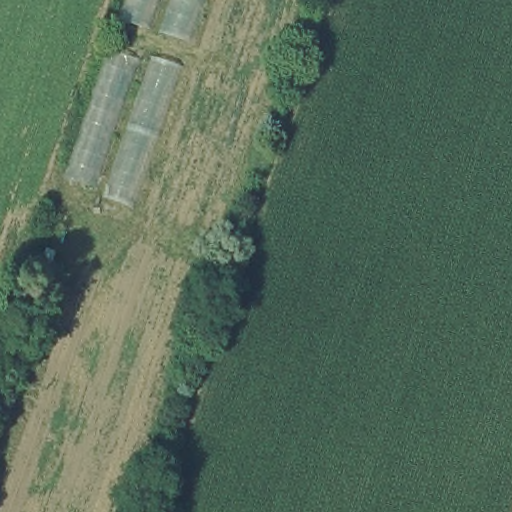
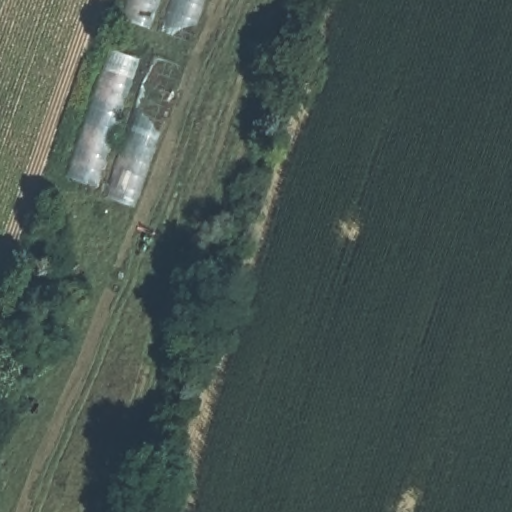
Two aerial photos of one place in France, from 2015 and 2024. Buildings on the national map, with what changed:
unchanged [(194,44),(122,22),(130,0),(209,0),(194,44)]
unchanged [(137,212),(65,190),(113,50),(153,62),(155,56),(188,67),(137,212)]

